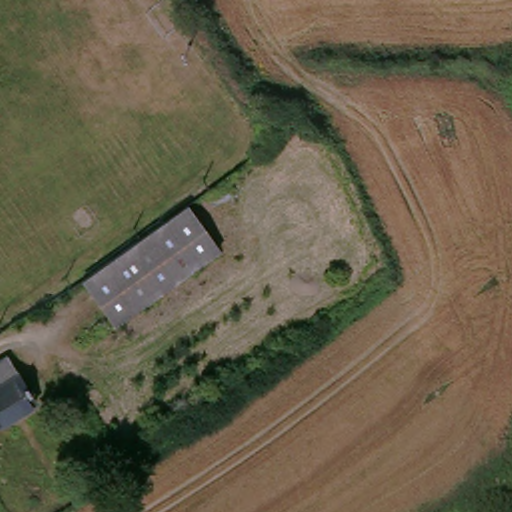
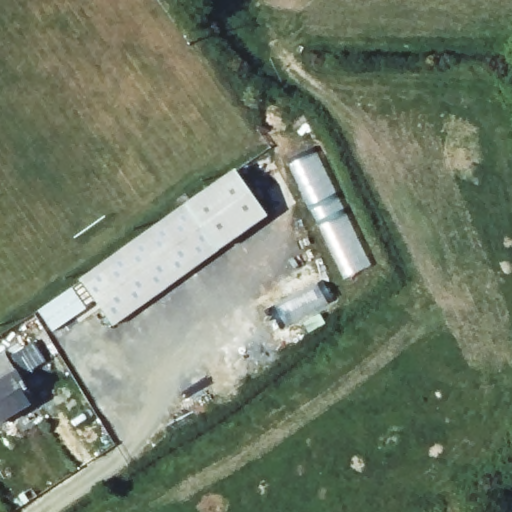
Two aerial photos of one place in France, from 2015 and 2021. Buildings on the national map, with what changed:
new [(314,150),(370,266),(345,277),(290,163),(314,150)]
new [(188,205),(238,170),(269,217),(221,251),(188,205)]
unchanged [(89,308),(53,332),(38,310),(74,286),(76,289),(185,209),(197,225),(218,255),(125,325),(109,335),(86,303),(89,308)]
unchanged [(0,425),(0,361),(32,402),(0,425)]

